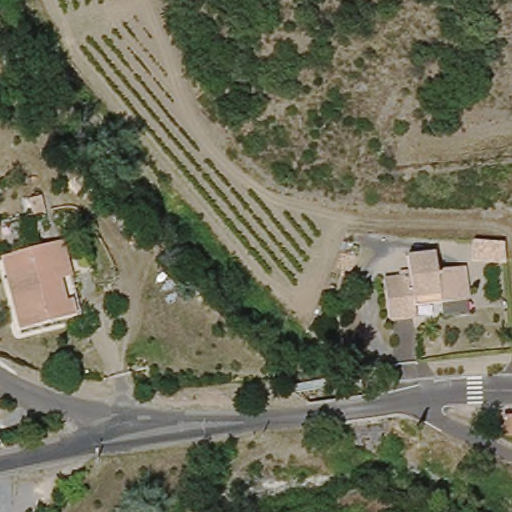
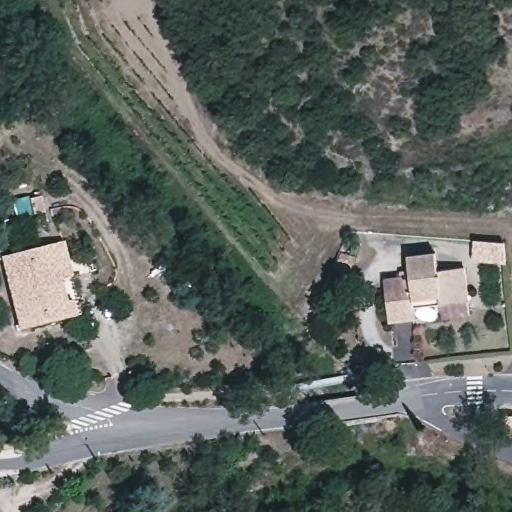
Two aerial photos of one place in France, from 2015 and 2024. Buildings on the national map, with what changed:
unchanged [(75,294),(79,315),(20,327),(7,252),(58,240),(70,295),(75,294)]
unchanged [(415,313),(387,316),(382,272),(412,269),(410,251),(438,249),(440,268),(466,266),(470,303),(440,306),(415,308),(415,313)]
unchanged [(512,435),(505,435),(501,418),(512,417),(512,435)]

